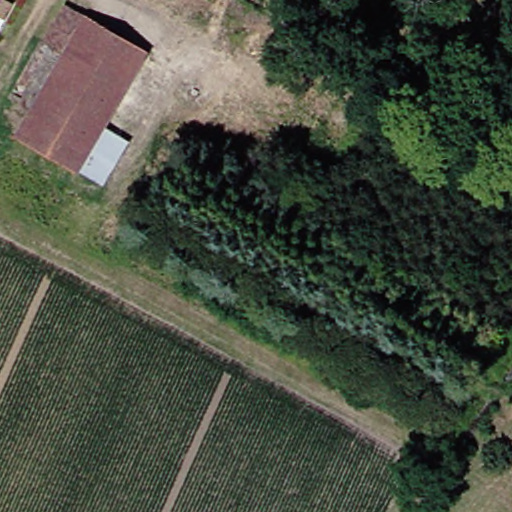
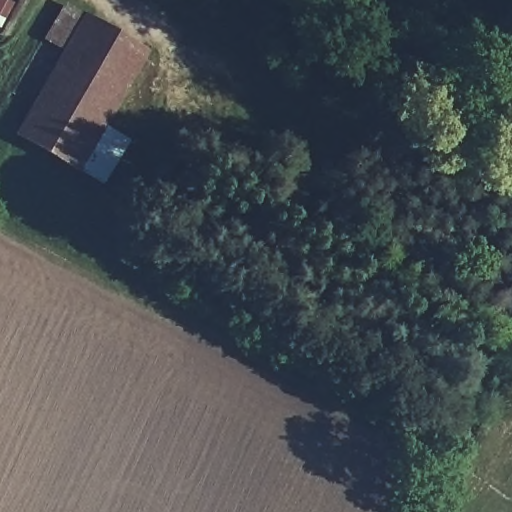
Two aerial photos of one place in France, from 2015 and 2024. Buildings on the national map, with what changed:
unchanged [(75,46),(94,16),(154,52),(135,82),(75,46)]
unchanged [(135,82),(82,167),(22,131),(75,46),(135,82)]

